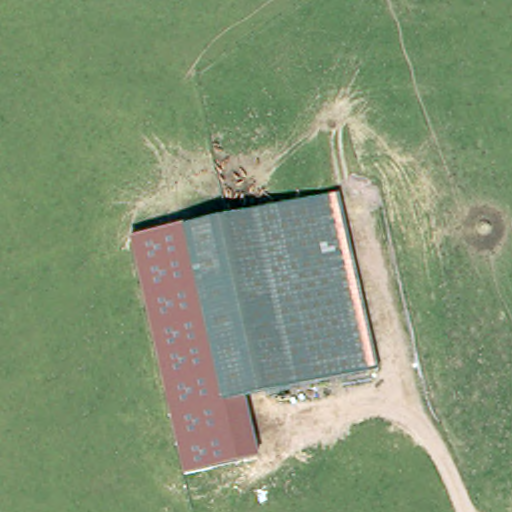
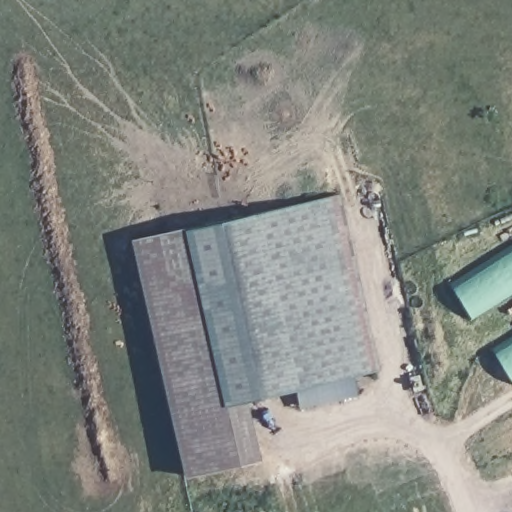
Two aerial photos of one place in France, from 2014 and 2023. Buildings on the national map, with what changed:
unchanged [(378,370),(247,401),(258,459),(184,476),(132,239),(340,195),(378,370)]
new [(478,317),(455,282),(512,246),(512,296),(478,317)]
new [(498,346),(512,337),(512,368),(498,346)]

